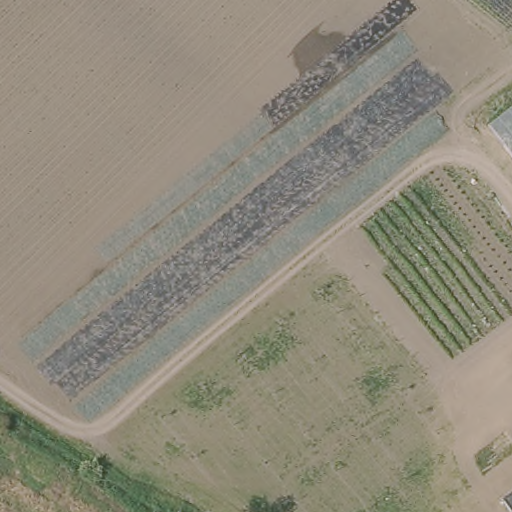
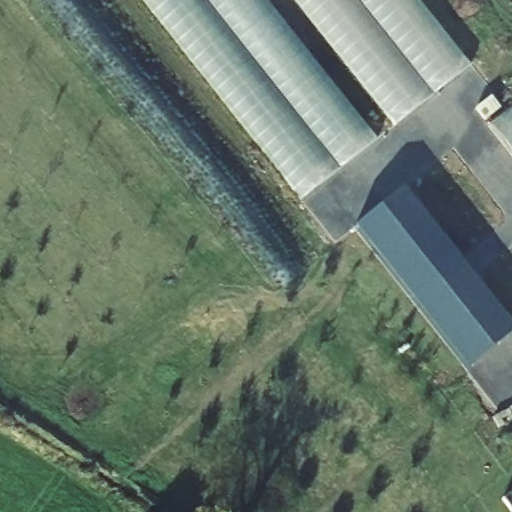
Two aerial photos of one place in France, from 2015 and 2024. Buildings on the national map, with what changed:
new [(300,202),(138,0),(262,0),(376,144),(300,202)]
new [(469,68),(394,129),(290,0),(415,0),(469,68)]
new [(468,0),(512,0),(512,45),(507,49),(468,0)]
unchanged [(512,106),(512,154),(489,124),(512,106)]
new [(467,372),(354,229),(402,190),(512,329),(512,335),(467,372)]
unchanged [(512,493),(512,510),(504,498),(512,493)]

